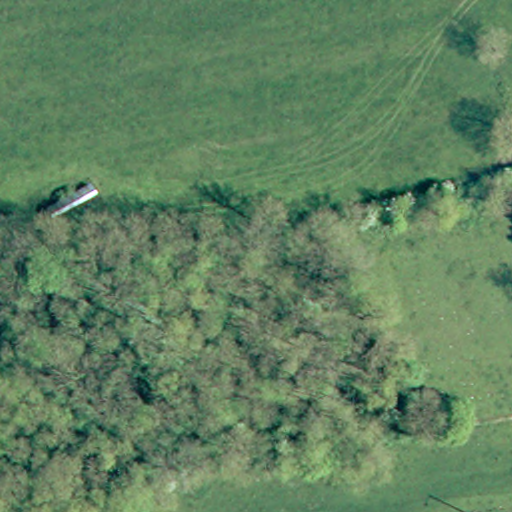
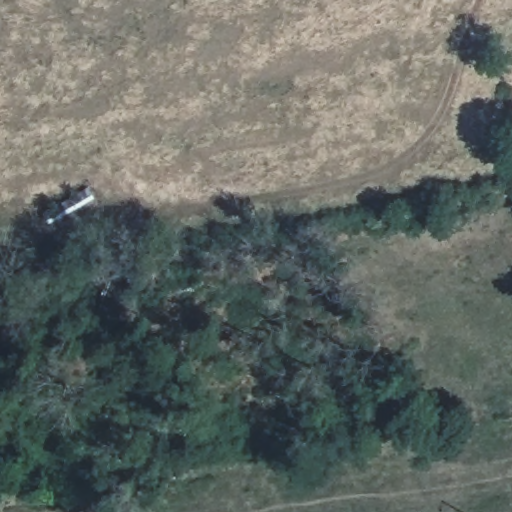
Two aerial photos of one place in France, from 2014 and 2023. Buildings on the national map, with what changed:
unchanged [(57,237),(45,208),(90,186),(106,218),(57,237)]

